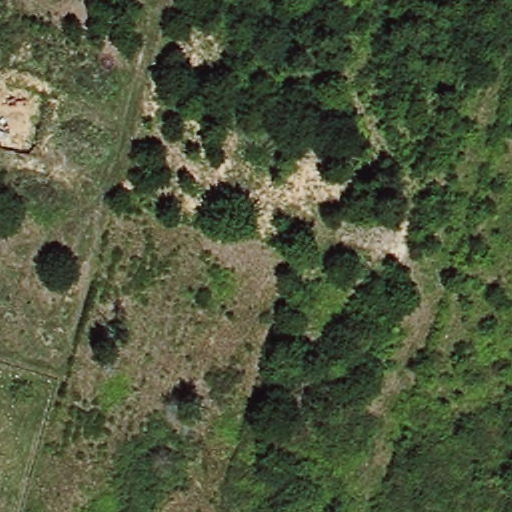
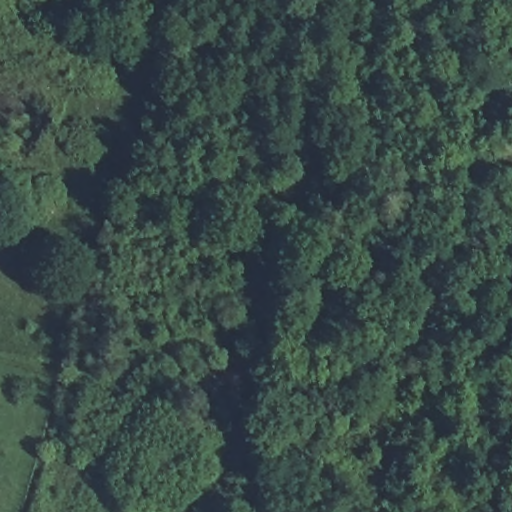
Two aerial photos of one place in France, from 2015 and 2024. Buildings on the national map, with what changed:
[]

